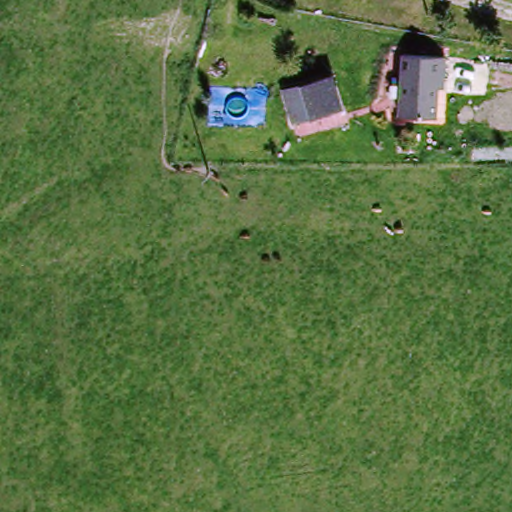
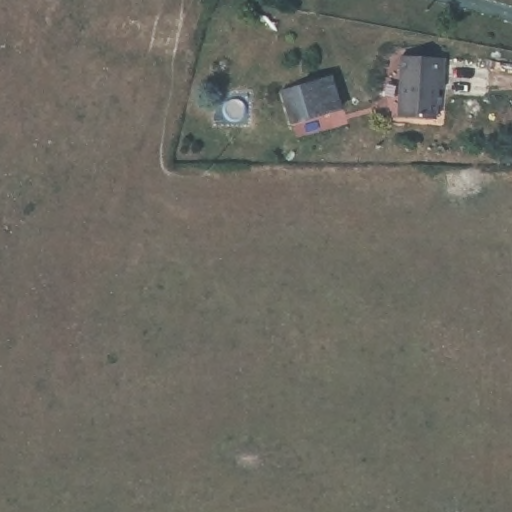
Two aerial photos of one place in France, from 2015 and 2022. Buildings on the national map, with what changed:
unchanged [(431,76),(428,122),(394,119),(398,56),(440,60),(438,76),(431,76)]
unchanged [(300,81),(330,72),(345,121),(315,131),(300,81)]
unchanged [(295,136),(280,88),(300,81),(315,131),(295,136)]

